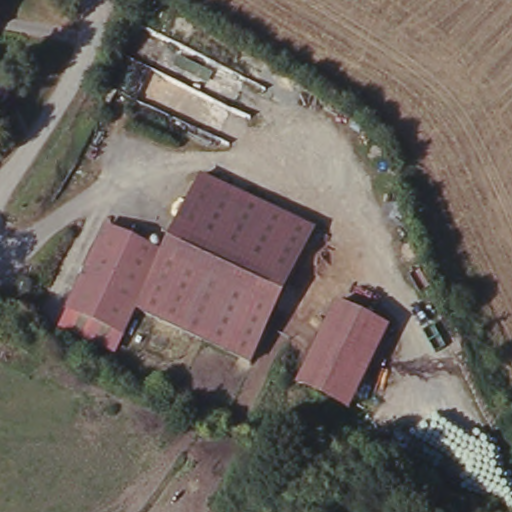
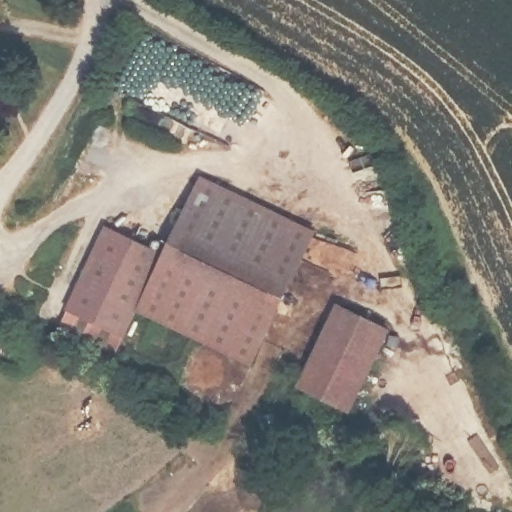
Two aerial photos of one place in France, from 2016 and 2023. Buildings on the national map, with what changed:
unchanged [(201,180),(315,230),(254,368),(141,314),(201,180)]
unchanged [(163,255),(115,356),(55,330),(101,226),(163,255)]
unchanged [(389,325),(351,412),(299,388),(338,303),(389,325)]

